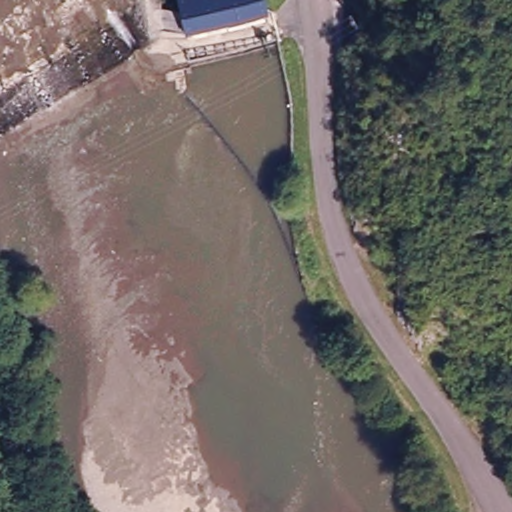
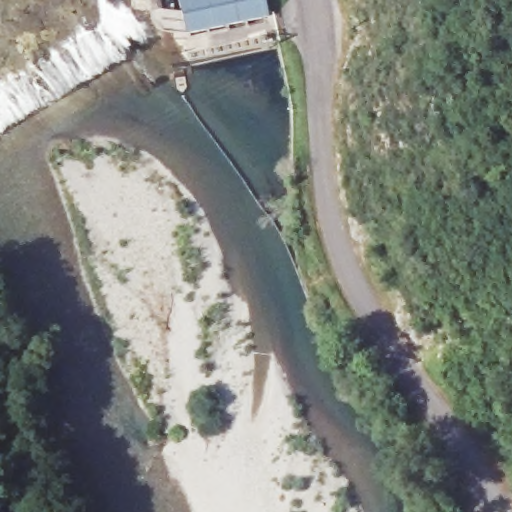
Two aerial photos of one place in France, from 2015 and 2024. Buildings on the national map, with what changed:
unchanged [(265,0),(268,21),(184,36),(176,0),(265,0)]

